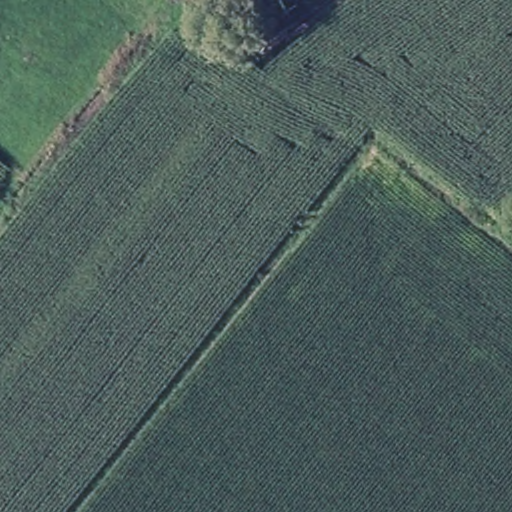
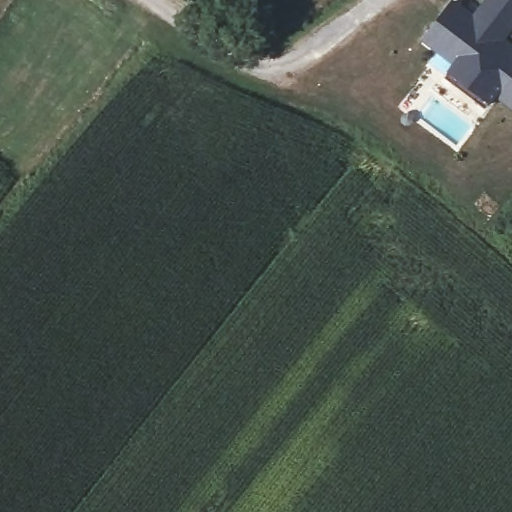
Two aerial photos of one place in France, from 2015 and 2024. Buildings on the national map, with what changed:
new [(459,0),(475,10),(483,0),(512,0),(512,33),(509,37),(512,41),(512,110),(498,99),(492,106),(447,72),(452,64),(422,41),(451,0),(459,0)]

